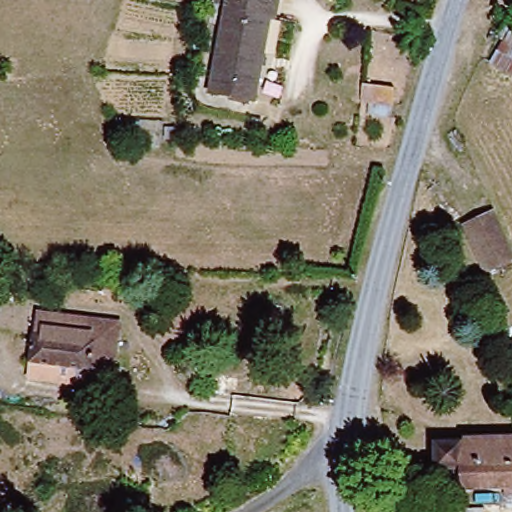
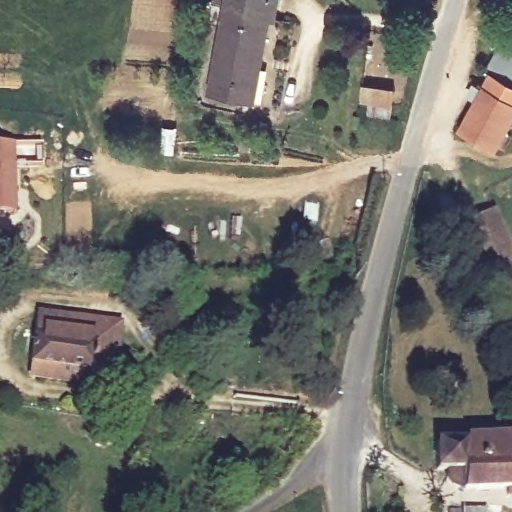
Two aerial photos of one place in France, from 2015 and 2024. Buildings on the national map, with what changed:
unchanged [(226,0),(283,0),(280,22),(270,21),(256,101),(210,92),(226,0)]
unchanged [(512,23),(512,75),(490,62),(512,23)]
unchanged [(396,88),(393,118),(369,116),(370,105),(362,104),(363,85),(396,88)]
new [(512,122),(495,152),(457,132),(481,85),(512,101),(512,122)]
new [(40,145),(40,164),(34,164),(34,160),(14,159),(14,216),(0,216),(0,145),(40,145)]
unchanged [(512,252),(512,262),(485,274),(463,225),(493,212),(512,252)]
unchanged [(36,362),(42,312),(126,322),(120,372),(36,362)]
unchanged [(470,433),(512,432),(512,487),(466,488),(465,467),(440,467),(440,438),(470,438),(470,433)]
unchanged [(502,508),(502,512),(463,512),(463,508),(502,508)]

